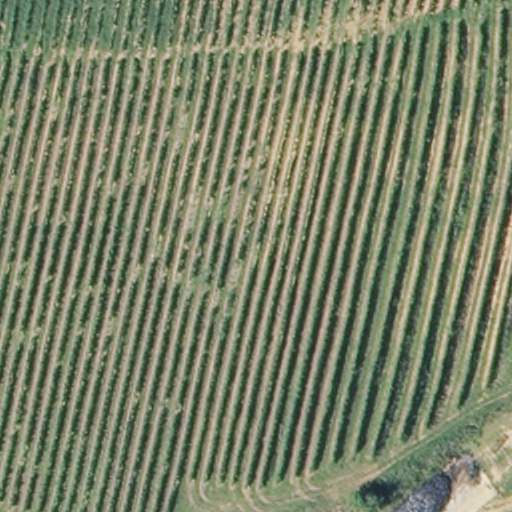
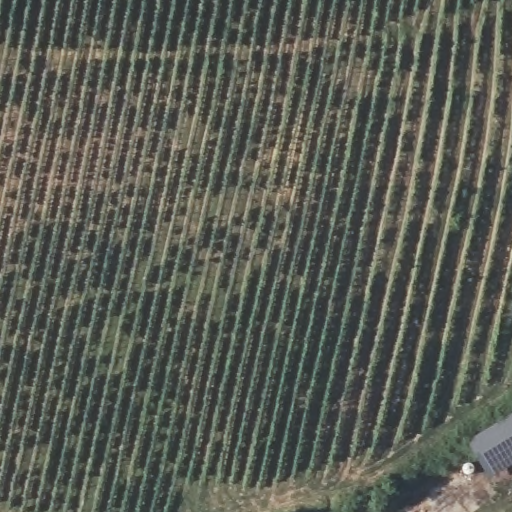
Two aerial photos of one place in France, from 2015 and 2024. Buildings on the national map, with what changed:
new [(490,479),(467,442),(512,415),(512,466),(490,479)]

